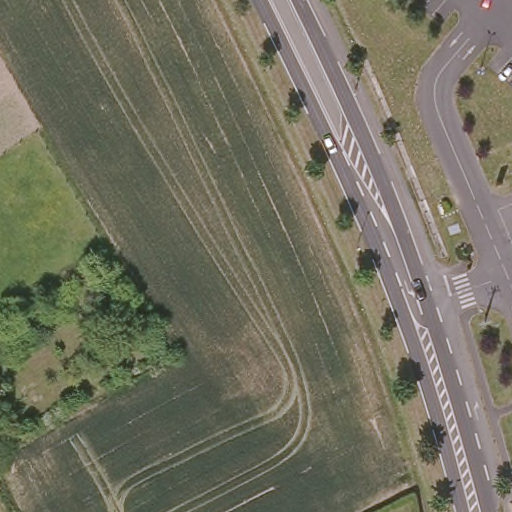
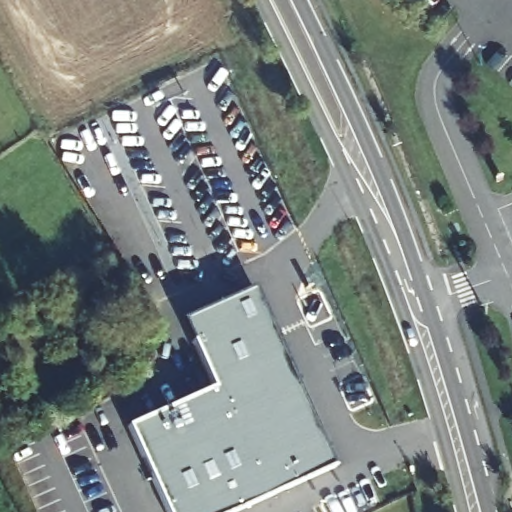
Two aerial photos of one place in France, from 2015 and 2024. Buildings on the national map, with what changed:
new [(235,512),(172,512),(130,422),(217,384),(187,313),(257,281),(340,464),(235,512)]

